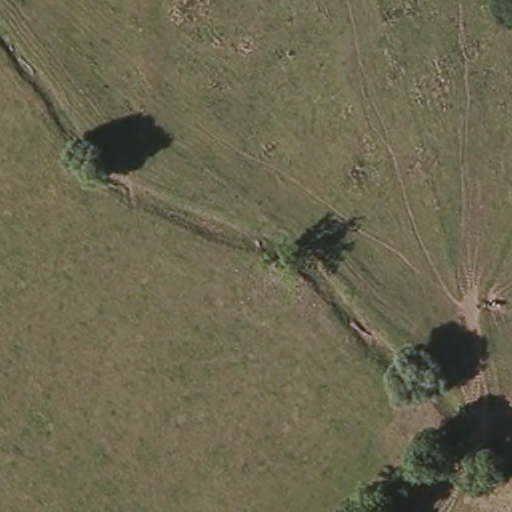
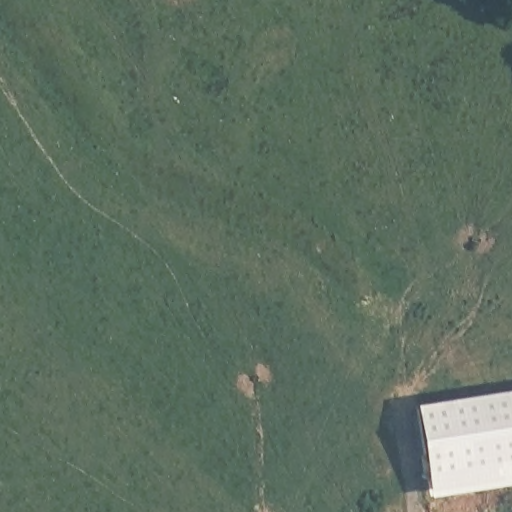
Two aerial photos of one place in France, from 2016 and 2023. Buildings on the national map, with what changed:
new [(512,393),(512,487),(429,498),(419,408),(512,393)]

